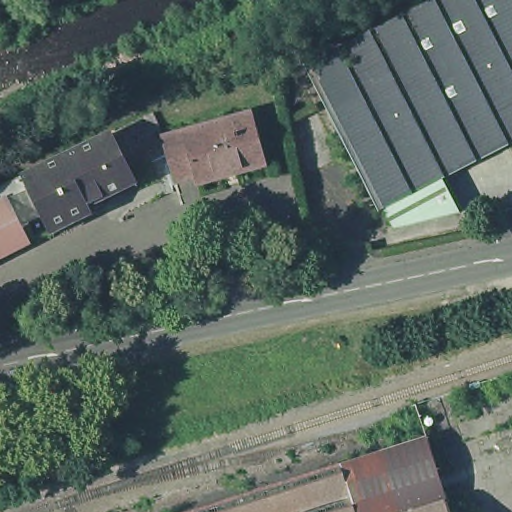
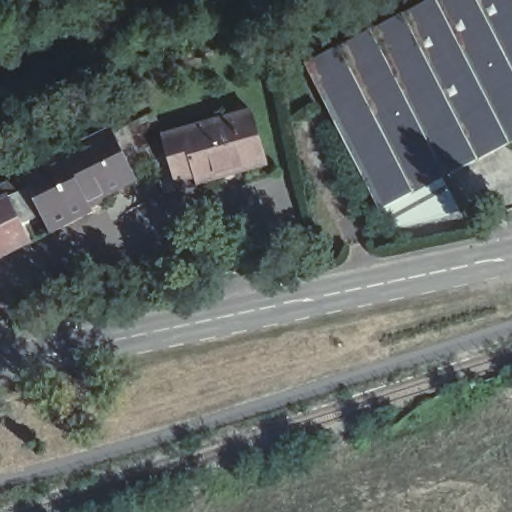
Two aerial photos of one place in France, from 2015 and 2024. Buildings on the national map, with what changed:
unchanged [(448,173),(389,204),(384,206),(308,59),(314,55),(371,27),(422,0),(512,0),(512,140),(448,173)]
unchanged [(314,55),(307,40),(363,12),(371,27),(314,55)]
unchanged [(256,111),(271,165),(200,184),(198,178),(186,130),(256,111)]
unchanged [(198,178),(177,183),(178,186),(163,195),(157,161),(135,172),(114,132),(147,115),(153,112),(165,135),(186,130),(198,178)]
unchanged [(4,186),(25,176),(114,132),(135,172),(139,180),(92,204),(95,213),(52,235),(40,207),(19,217),(32,243),(0,259),(0,183),(2,182),(4,186)]
unchanged [(448,173),(465,206),(399,223),(389,204),(448,173)]
demolished [(352,242),(337,245),(333,220),(347,218),(352,242)]
demolished [(441,467),(451,497),(405,512),(360,512),(344,460),(422,434),(441,467)]
demolished [(360,512),(183,512),(182,511),(344,460),(360,512)]
demolished [(451,497),(455,512),(405,512),(451,497)]
demolished [(182,511),(183,512),(179,512),(182,511)]

